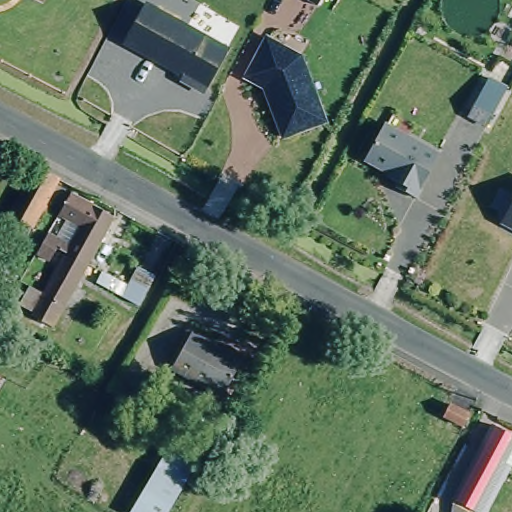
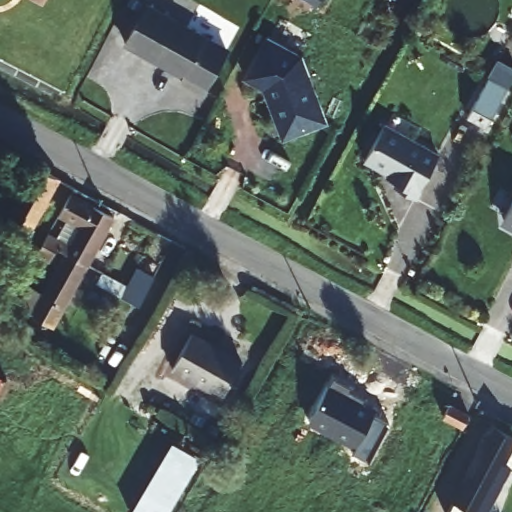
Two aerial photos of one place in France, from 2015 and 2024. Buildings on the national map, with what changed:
unchanged [(40,8),(26,0),(45,0),(40,8)]
unchanged [(308,0),(323,0),(318,7),(308,0)]
unchanged [(214,86),(203,87),(195,82),(193,76),(134,45),(153,9),(193,31),(231,51),(214,86)]
unchanged [(265,89),(247,79),(268,39),(302,57),(327,123),(284,139),(265,89)]
unchanged [(494,113),(473,104),(490,74),(507,84),(494,113)]
unchanged [(420,185),(400,174),(405,166),(370,146),(388,112),(443,142),(420,185)]
unchanged [(2,235),(33,177),(57,191),(13,267),(0,260),(0,238),(2,235)]
unchanged [(120,218),(92,269),(72,258),(62,252),(60,255),(44,246),(73,191),(120,218)]
unchanged [(512,199),(512,209),(510,203),(512,199)]
unchanged [(54,333),(35,322),(37,319),(25,313),(37,293),(48,300),(72,258),(92,269),(54,333)]
unchanged [(95,283),(102,269),(125,282),(135,265),(157,275),(140,307),(95,283)]
unchanged [(222,401),(172,375),(193,340),(242,366),(222,401)]
unchanged [(7,381),(0,393),(0,377),(7,381)]
new [(368,460),(352,452),(355,447),(308,423),(332,378),(350,387),(348,391),(366,399),(365,402),(377,407),(373,413),(388,423),(368,460)]
unchanged [(443,505),(449,508),(493,427),(512,437),(512,467),(489,512),(441,512),(440,512),(443,505)]
unchanged [(202,457),(169,512),(131,512),(175,441),(202,457)]

